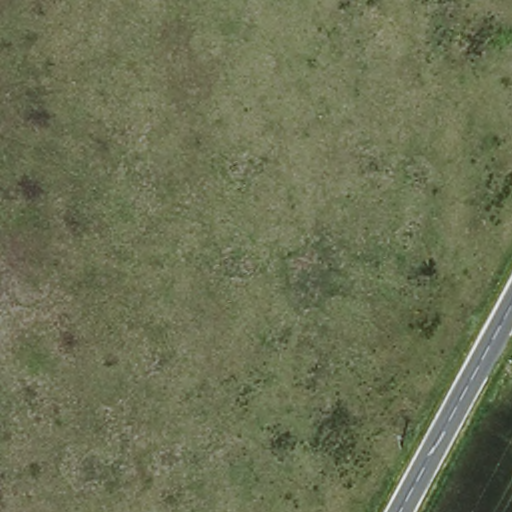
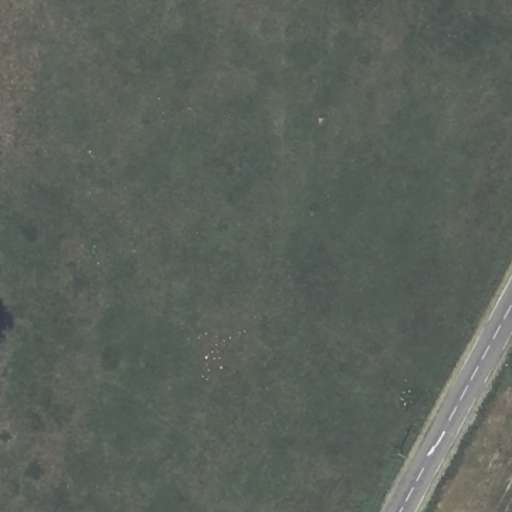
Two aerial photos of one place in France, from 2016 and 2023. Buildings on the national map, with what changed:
[]

